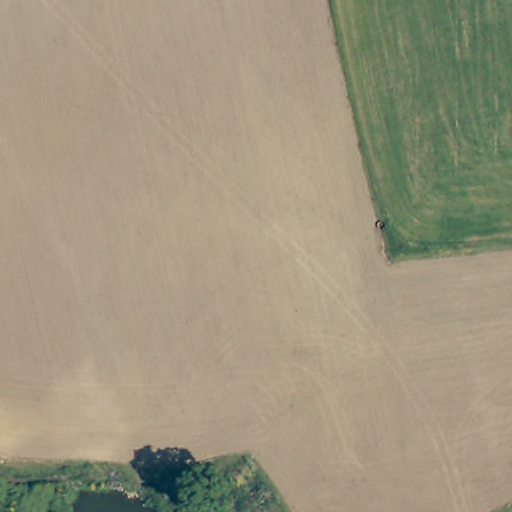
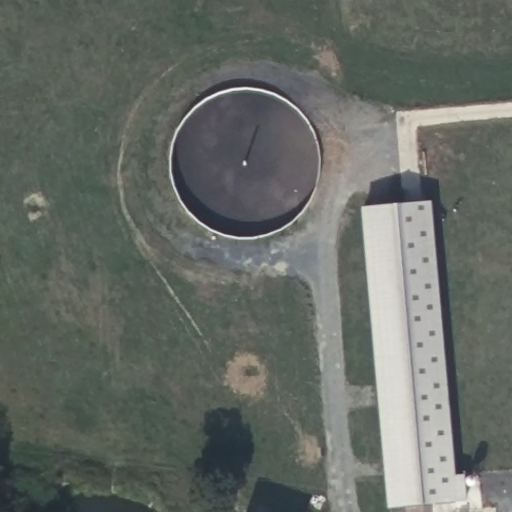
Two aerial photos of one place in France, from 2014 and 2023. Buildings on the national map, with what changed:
new [(361,209),(429,204),(455,476),(464,476),(466,502),(388,508),(361,209)]

